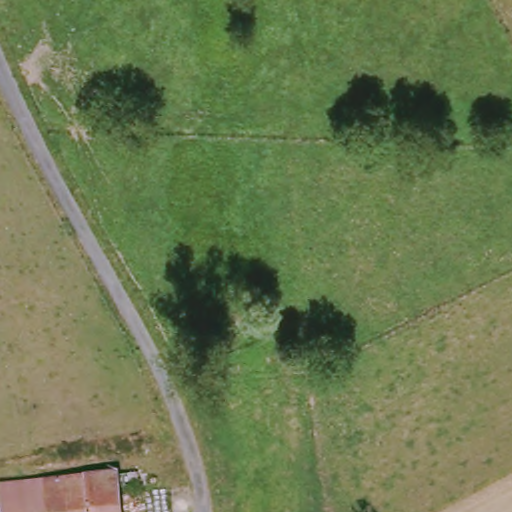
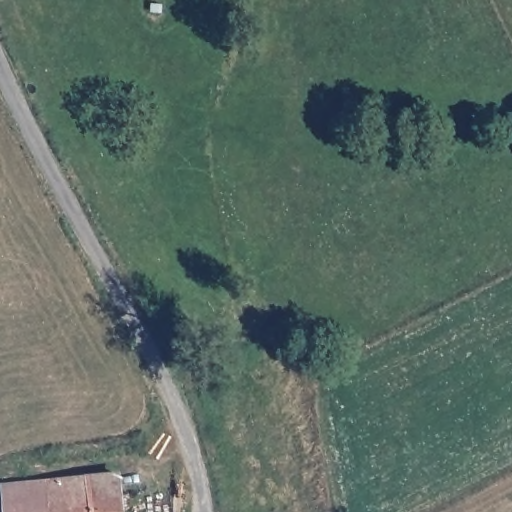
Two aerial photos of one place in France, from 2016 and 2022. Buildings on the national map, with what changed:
unchanged [(2,486),(118,472),(123,512),(3,512),(2,486)]

